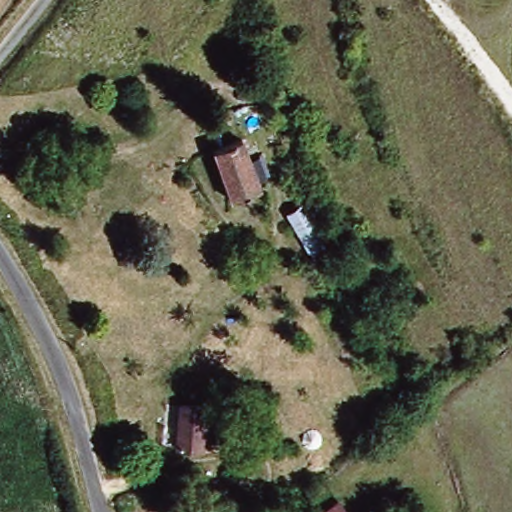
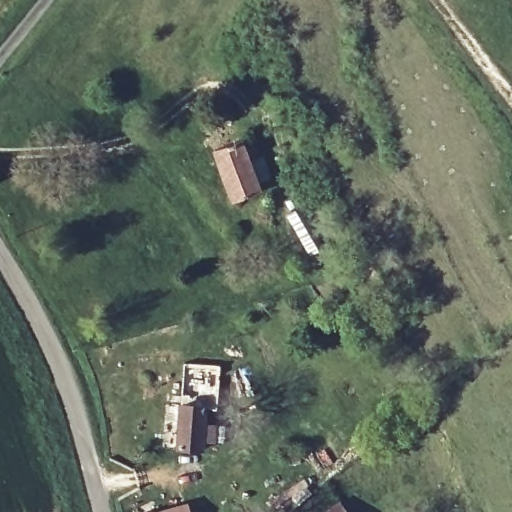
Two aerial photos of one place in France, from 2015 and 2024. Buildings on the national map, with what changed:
unchanged [(277,156),(269,131),(288,124),(297,149),(277,156)]
unchanged [(225,196),(211,146),(240,139),(254,189),(225,196)]
unchanged [(288,227),(283,215),(306,205),(310,217),(288,227)]
unchanged [(324,248),(302,259),(288,227),(310,219),(324,248)]
unchanged [(219,441),(204,440),(204,451),(174,450),(177,405),(207,407),(206,423),(220,424),(219,441)]
new [(189,502),(191,512),(153,512),(189,502)]
unchanged [(341,512),(321,512),(334,502),(341,512)]

